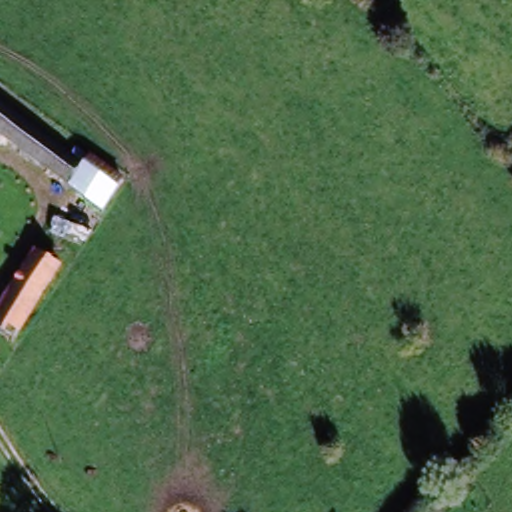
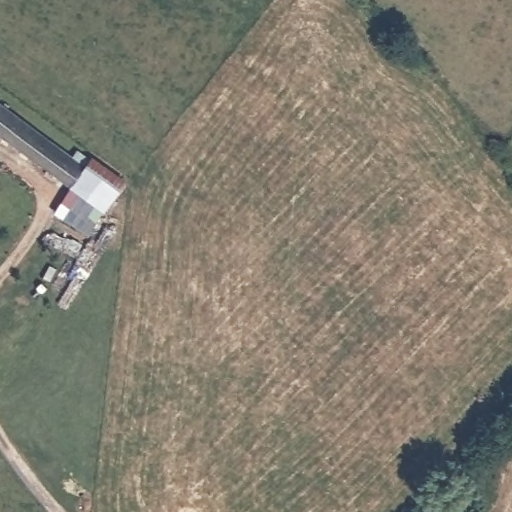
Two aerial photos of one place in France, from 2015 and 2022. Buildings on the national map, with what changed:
unchanged [(0,134),(0,102),(0,101),(88,167),(72,188),(0,134)]
unchanged [(104,213),(72,188),(88,167),(95,158),(127,182),(104,213)]
unchanged [(36,252),(61,268),(11,343),(0,336),(0,306),(36,252)]

